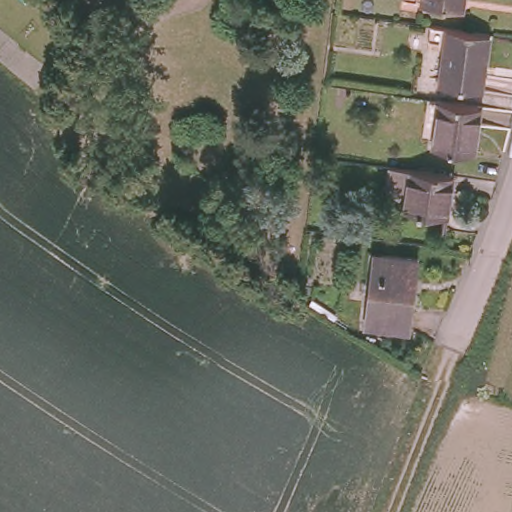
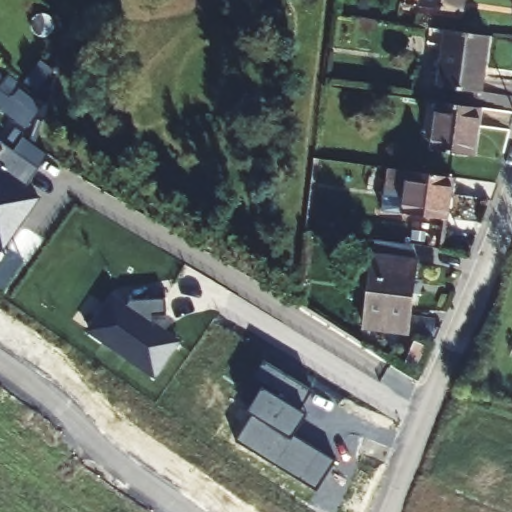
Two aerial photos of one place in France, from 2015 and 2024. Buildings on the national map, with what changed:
unchanged [(457,8),(417,4),(417,0),(458,0),(457,8)]
unchanged [(488,37),(480,95),(439,90),(446,32),(488,37)]
unchanged [(479,111),(473,158),(433,153),(440,106),(479,111)]
new [(35,170),(22,190),(33,199),(21,217),(17,214),(10,225),(13,227),(1,245),(0,245),(0,145),(35,170)]
unchanged [(452,179),(447,222),(405,217),(410,174),(452,179)]
unchanged [(415,264),(406,335),(366,331),(377,258),(415,264)]
new [(111,295),(124,304),(128,298),(165,296),(165,314),(147,315),(148,320),(177,340),(154,374),(88,329),(111,295)]
new [(262,357),(312,387),(300,406),(306,410),(292,431),(334,458),(314,490),(233,438),(254,405),(240,395),(262,357)]

